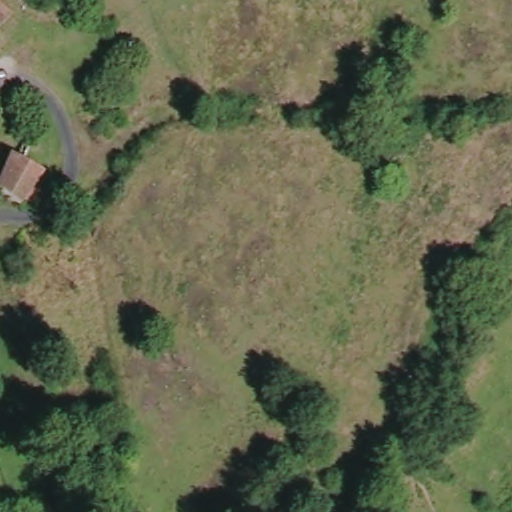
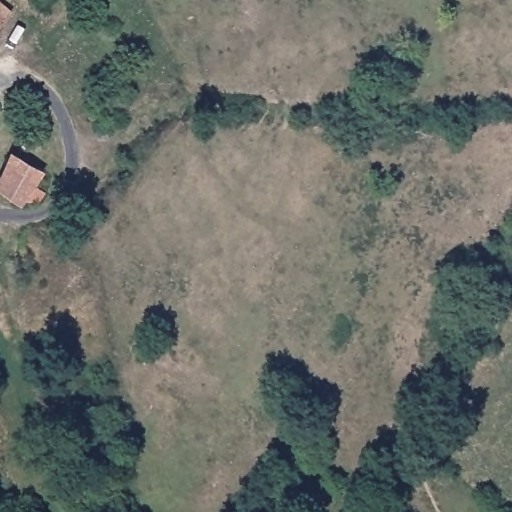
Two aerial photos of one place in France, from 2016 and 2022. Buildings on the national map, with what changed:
unchanged [(12,10),(0,21),(0,0),(2,0),(12,10)]
unchanged [(15,157),(34,171),(14,197),(0,190),(0,181),(15,157)]

